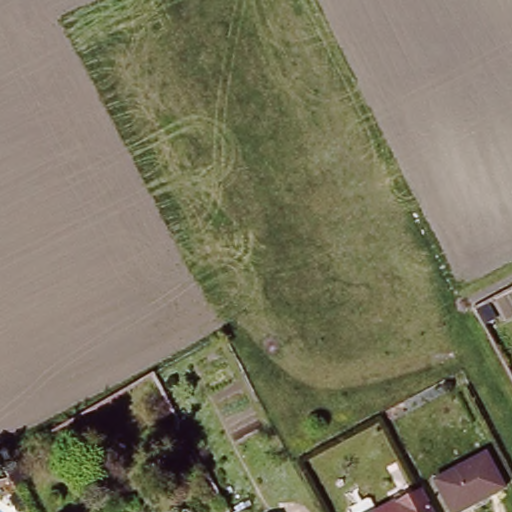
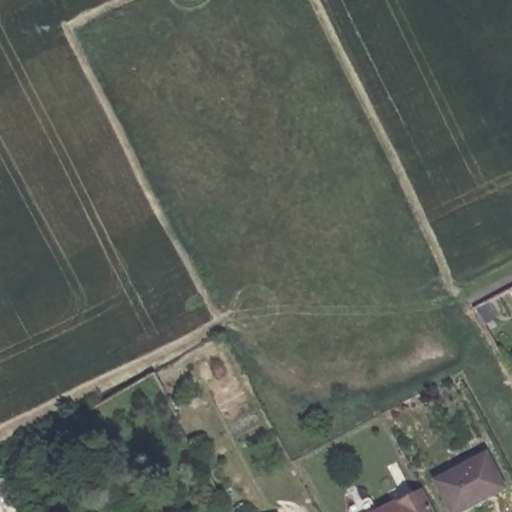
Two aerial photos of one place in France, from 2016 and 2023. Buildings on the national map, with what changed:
unchanged [(482,453),(501,487),(456,512),(448,512),(432,480),(482,453)]
unchanged [(397,501),(424,487),(436,512),(377,512),(397,501)]

